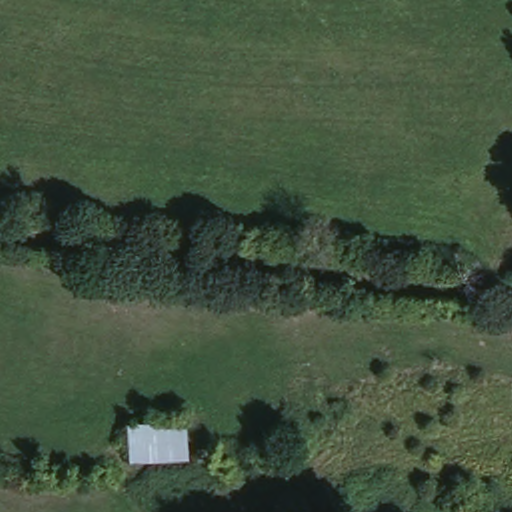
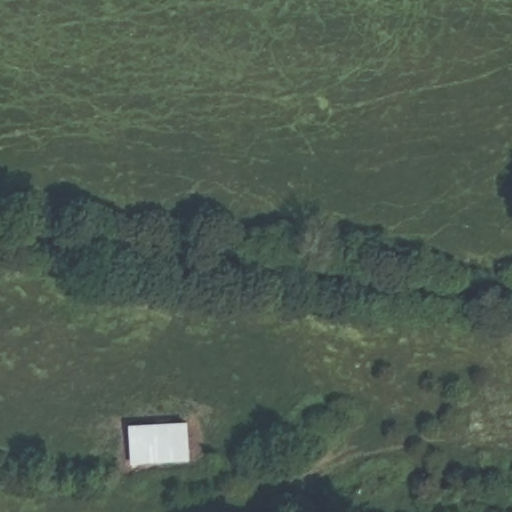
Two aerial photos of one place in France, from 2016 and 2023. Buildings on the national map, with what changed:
unchanged [(130,421),(189,424),(188,461),(128,459),(130,421)]

